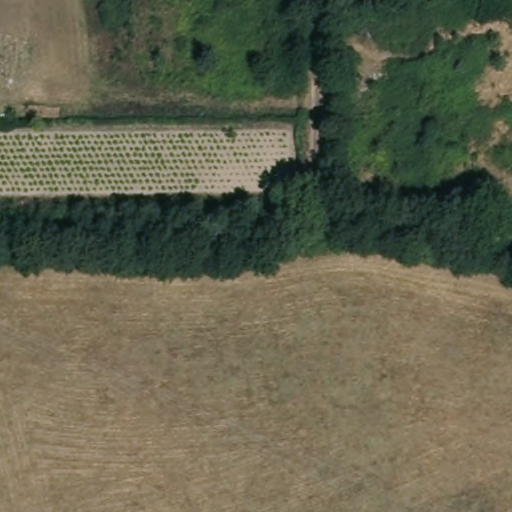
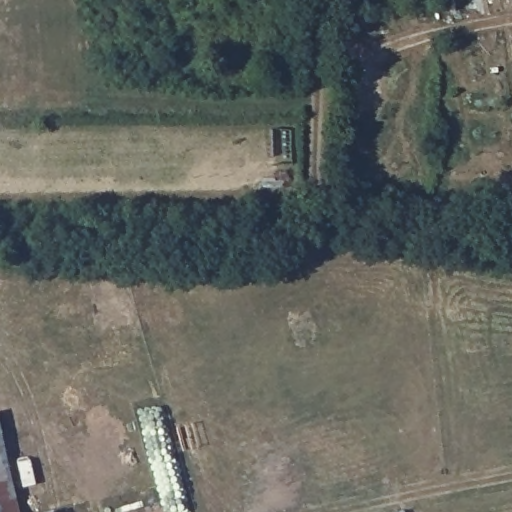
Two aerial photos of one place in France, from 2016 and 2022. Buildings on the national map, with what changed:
unchanged [(355,0),(355,6),(342,8),(342,0),(355,0)]
new [(17,512),(0,512),(0,439),(17,512)]

